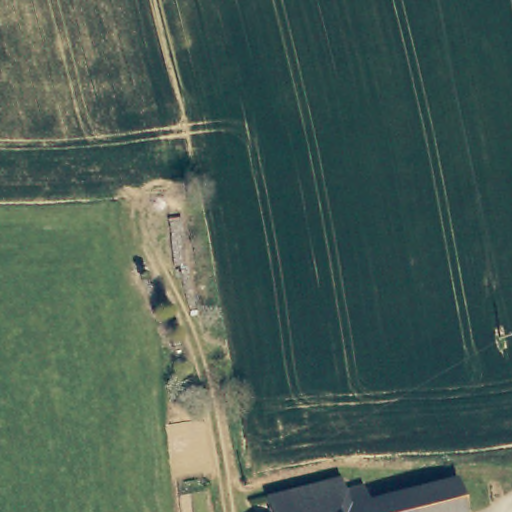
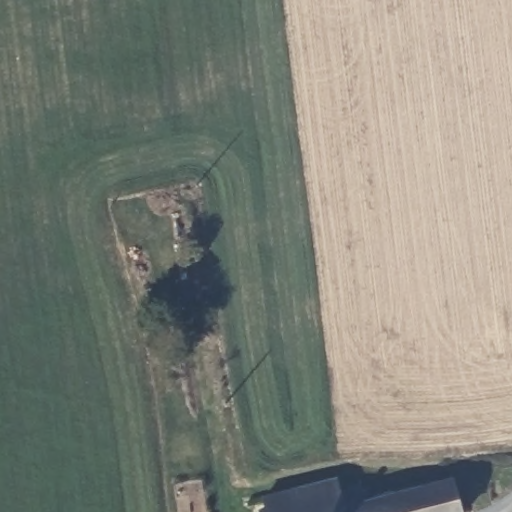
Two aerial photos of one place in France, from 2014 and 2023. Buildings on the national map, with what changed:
unchanged [(336,480),(338,490),(358,485),(362,502),(451,480),(459,512),(264,512),(261,499),(336,480)]

